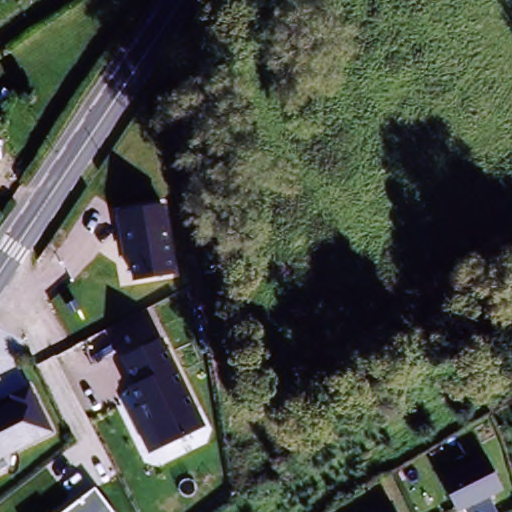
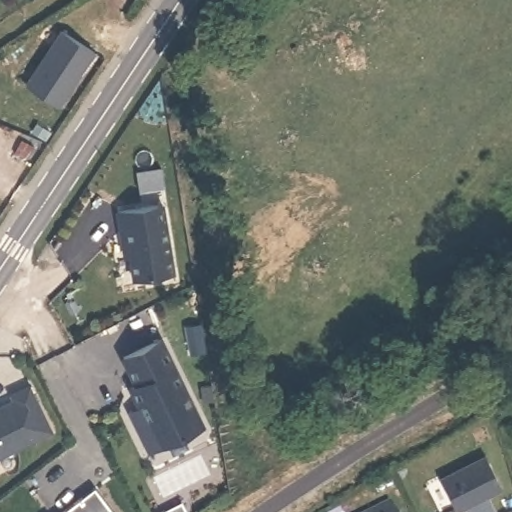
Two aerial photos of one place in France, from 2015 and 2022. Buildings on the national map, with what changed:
new [(100,53),(61,108),(25,85),(61,30),(100,53)]
unchanged [(173,272),(133,278),(130,252),(123,253),(119,209),(163,204),(173,272)]
unchanged [(201,426),(161,447),(144,412),(141,412),(130,387),(135,385),(123,358),(160,340),(201,426)]
unchanged [(0,457),(0,406),(11,401),(8,396),(27,387),(52,432),(0,457)]
unchanged [(486,487),(499,512),(467,512),(460,501),(457,503),(452,495),(440,472),(483,448),(500,480),(486,487)]
unchanged [(63,512),(93,489),(111,512),(63,512)]
unchanged [(393,512),(352,512),(383,496),(393,512)]

